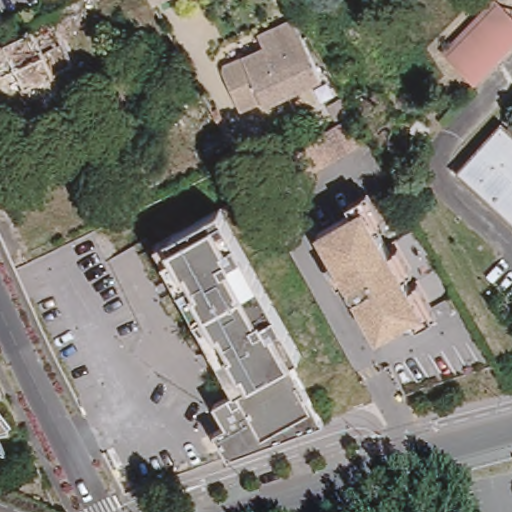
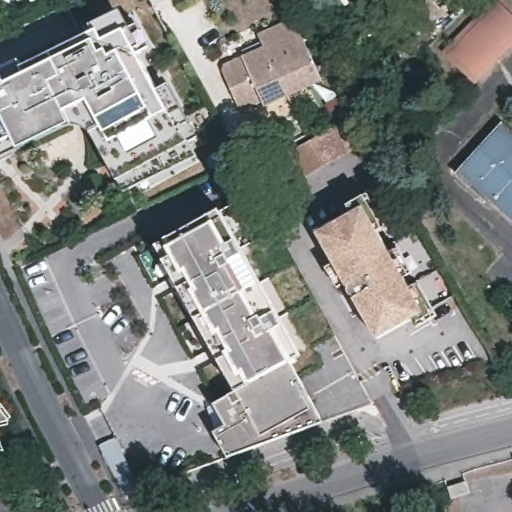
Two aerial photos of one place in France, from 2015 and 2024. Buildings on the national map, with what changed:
demolished [(37,25),(34,20),(69,0),(74,0),(84,19),(65,29),(79,60),(58,70),(64,82),(31,99),(25,86),(29,84),(21,64),(0,74),(0,43),(37,25)]
unchanged [(144,0),(167,0),(149,9),(144,0)]
unchanged [(491,0),(495,0),(512,16),(512,47),(477,85),(466,75),(442,52),(491,0)]
new [(3,76),(0,71),(0,67),(20,59),(23,65),(94,30),(91,23),(123,8),(132,26),(138,23),(198,137),(191,140),(198,155),(126,189),(93,130),(88,126),(82,123),(78,121),(73,121),(0,155),(0,77),(3,76)]
unchanged [(306,41),(322,79),(265,105),(264,101),(242,111),(229,81),(230,81),(222,65),(242,55),(264,45),(256,28),(288,13),(306,41)]
unchanged [(419,117),(435,130),(422,145),(406,131),(419,117)]
unchanged [(318,169),(306,143),(350,121),(362,147),(318,169)]
unchanged [(507,121),(512,126),(512,185),(498,200),(464,167),(507,121)]
unchanged [(512,185),(512,213),(498,200),(512,185)]
unchanged [(345,285),(334,289),(324,268),(334,265),(315,232),(351,214),(345,206),(366,195),(438,318),(421,328),(414,318),(376,340),(345,285)]
unchanged [(213,435),(223,429),(212,407),(234,396),(156,247),(215,212),(298,357),(291,365),(321,426),(227,462),(213,435)]
unchanged [(14,419),(13,425),(0,428),(0,402),(14,419)]

